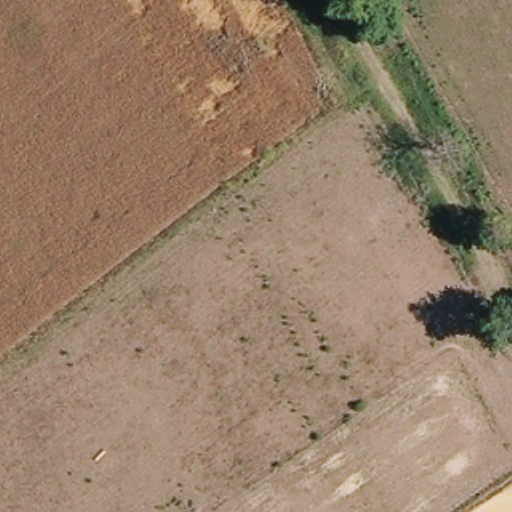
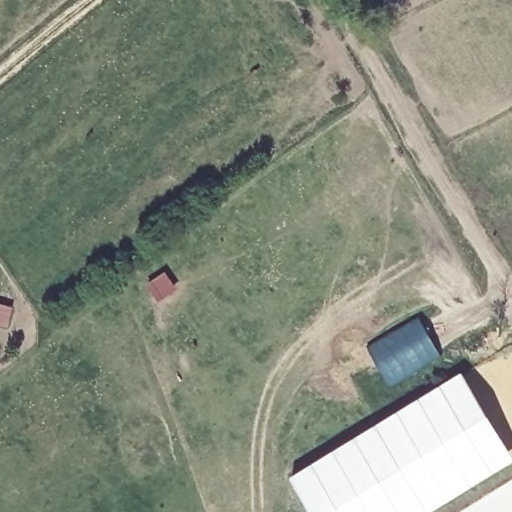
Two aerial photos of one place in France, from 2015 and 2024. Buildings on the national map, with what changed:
new [(388,385),(367,347),(420,317),(440,355),(388,385)]
new [(463,372),(512,455),(512,463),(431,512),(313,512),(292,477),(463,372)]

